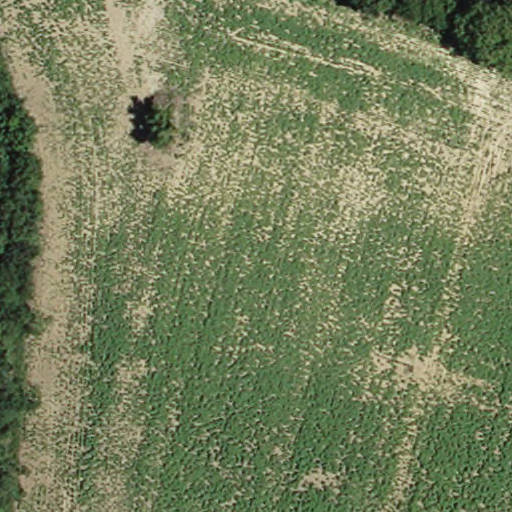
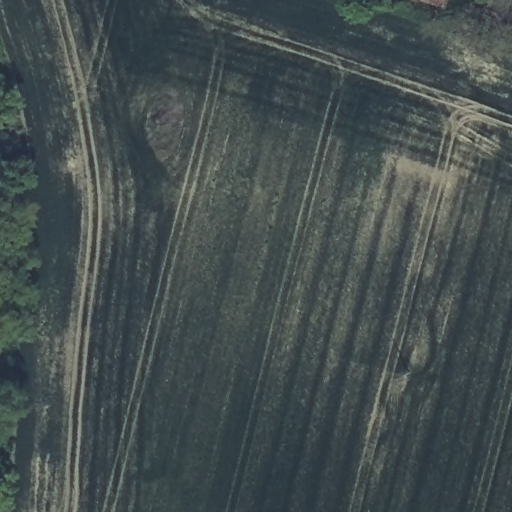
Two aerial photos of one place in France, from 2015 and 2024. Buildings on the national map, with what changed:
unchanged [(452,4),(441,0),(453,0),(452,4)]

